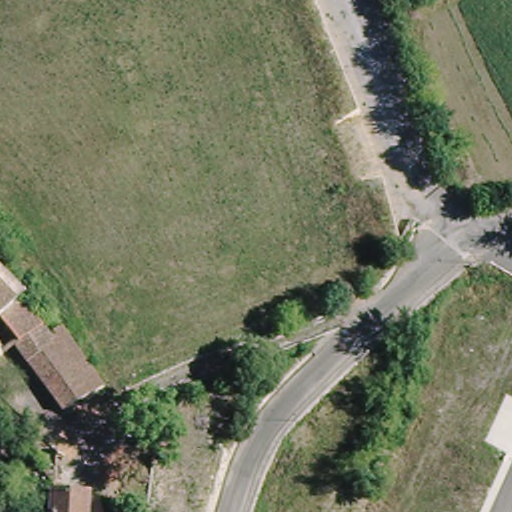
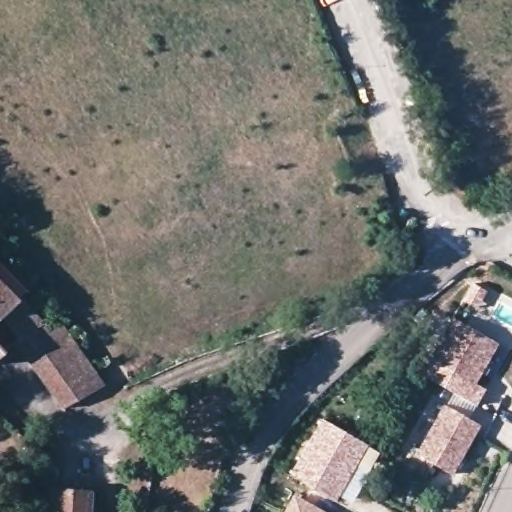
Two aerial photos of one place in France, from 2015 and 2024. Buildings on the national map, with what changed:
unchanged [(68,401),(23,346),(5,316),(7,314),(0,308),(0,262),(54,322),(65,313),(110,373),(68,401)]
new [(499,343),(475,384),(428,358),(452,318),(499,343)]
unchanged [(2,344),(0,346),(0,343),(2,344)]
new [(480,425),(454,474),(415,454),(443,406),(480,425)]
new [(366,444),(336,499),(290,475),(321,418),(366,444)]
unchanged [(90,512),(55,512),(57,480),(93,482),(90,512)]
new [(323,512),(285,512),(294,496),(323,512)]

